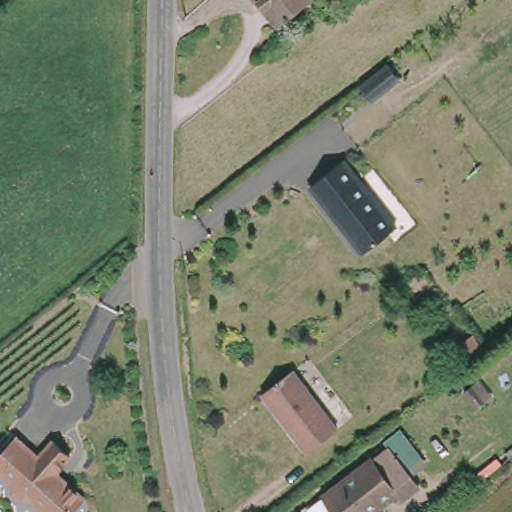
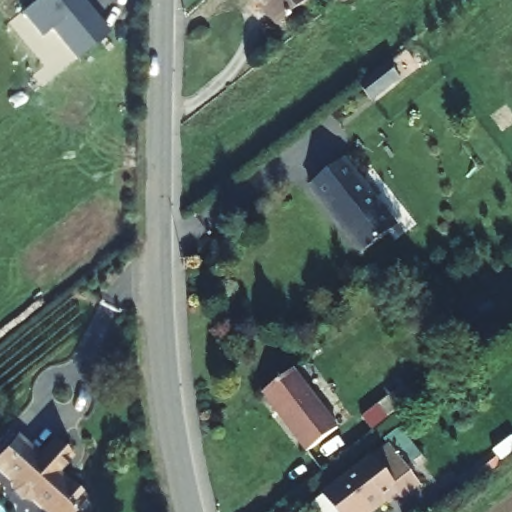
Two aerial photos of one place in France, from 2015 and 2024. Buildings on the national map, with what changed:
new [(76,60),(51,30),(41,38),(21,13),(36,0),(82,0),(109,32),(76,60)]
unchanged [(252,0),(308,0),(311,5),(279,34),(252,0)]
unchanged [(374,74),(386,87),(364,105),(353,91),(374,74)]
unchanged [(396,222),(363,249),(308,183),(341,156),(396,222)]
unchanged [(335,423),(304,447),(259,388),(289,365),(335,423)]
unchanged [(34,498),(31,502),(25,501),(9,487),(15,480),(0,465),(0,458),(21,436),(41,455),(55,440),(73,457),(56,475),(56,483),(70,483),(88,500),(75,512),(49,512),(34,498)]
unchanged [(387,451),(416,491),(399,504),(393,497),(373,512),(332,512),(323,501),(387,451)]

